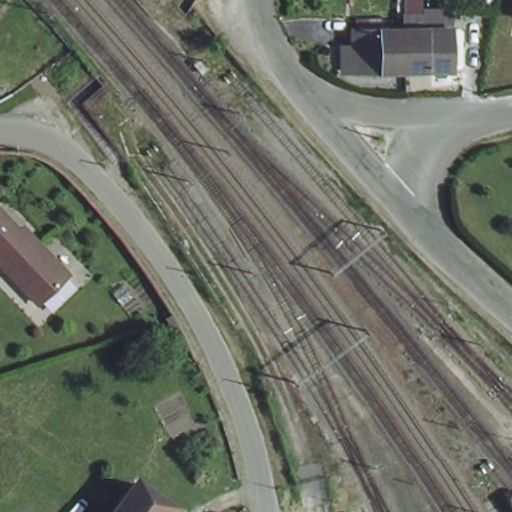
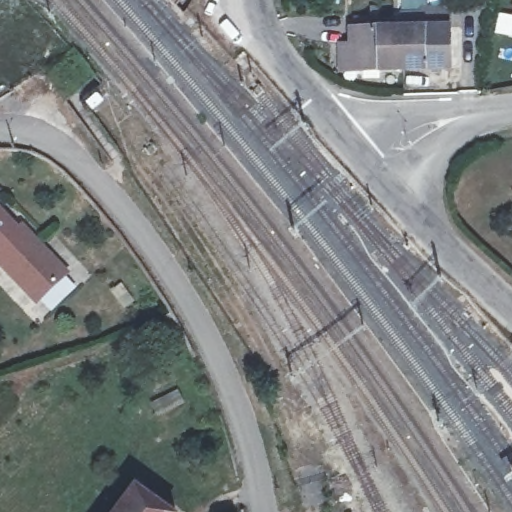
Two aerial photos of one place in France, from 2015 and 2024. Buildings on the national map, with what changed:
unchanged [(420,20),(420,14),(445,15),(446,75),(440,75),(437,80),(428,80),(426,76),(399,76),(397,35),(397,20),(420,20)]
unchanged [(348,35),(397,35),(399,76),(348,77),(348,35)]
unchanged [(26,224),(71,268),(42,297),(0,254),(0,205),(2,203),(23,225),(26,224)]
unchanged [(163,512),(113,512),(131,488),(163,512)]

